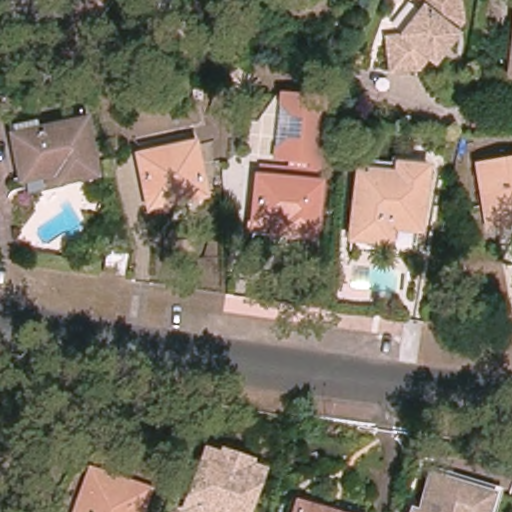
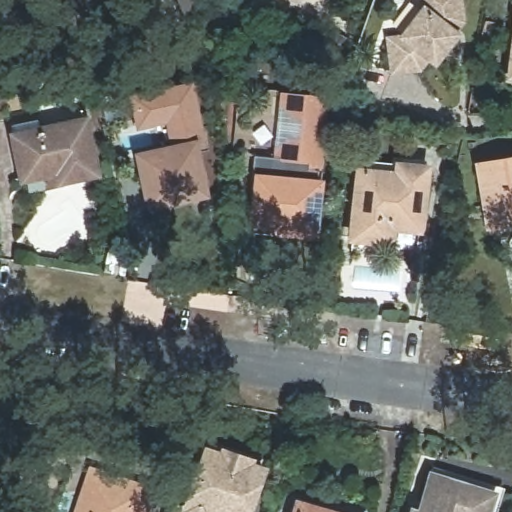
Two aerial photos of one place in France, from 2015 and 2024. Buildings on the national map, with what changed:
unchanged [(459,33),(461,35),(439,65),(432,60),(424,70),(396,74),(392,48),(400,38),(405,37),(427,9),(426,0),(464,0),(468,22),(459,33)]
unchanged [(509,67),(512,49),(512,68),(509,67)]
new [(194,144),(170,149),(164,125),(136,131),(128,94),(193,82),(207,145),(194,145),(194,144)]
unchanged [(314,237),(285,235),(285,229),(252,225),(256,177),(257,177),(259,165),(273,166),(280,95),(325,99),(319,169),(316,169),(315,182),(320,183),(314,237)]
unchanged [(97,176),(57,184),(55,175),(20,182),(10,136),(16,135),(15,127),(33,124),(35,130),(84,120),(97,176)]
unchanged [(205,197),(181,202),(179,192),(145,200),(136,156),(194,144),(205,197)]
unchanged [(486,228),(476,166),(512,159),(512,224),(486,228)]
unchanged [(420,232),(393,230),(390,245),(349,240),(356,171),(394,175),(395,165),(426,168),(420,232)]
unchanged [(124,278),(106,275),(110,255),(128,257),(124,278)]
unchanged [(187,512),(205,459),(220,464),(221,460),(252,471),(250,475),(264,480),(253,512),(187,512)]
unchanged [(75,512),(89,470),(150,490),(143,512),(75,512)]
unchanged [(407,512),(408,506),(416,509),(425,478),(449,485),(452,476),(493,488),(487,512),(482,512),(468,507),(467,512),(457,512),(447,509),(447,512),(407,512)]
unchanged [(328,512),(293,512),(295,502),(328,512)]

